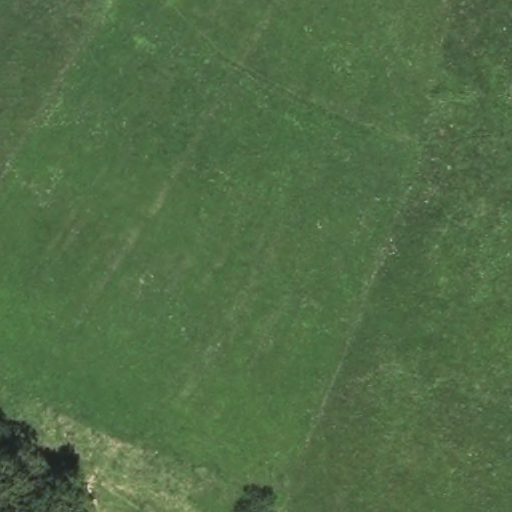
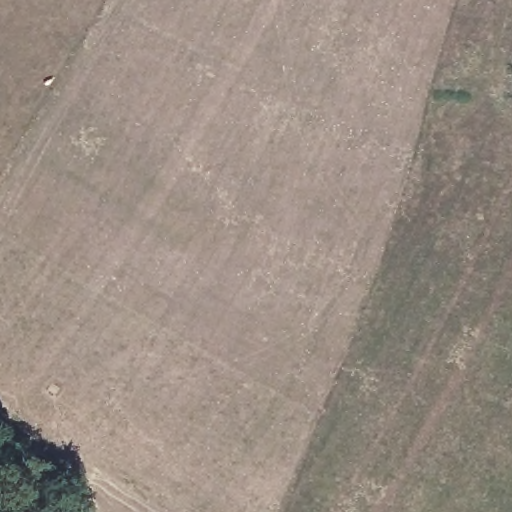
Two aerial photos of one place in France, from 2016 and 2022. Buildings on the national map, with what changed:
[]

